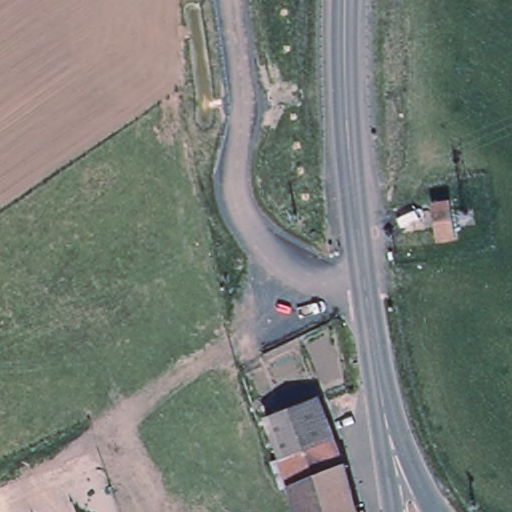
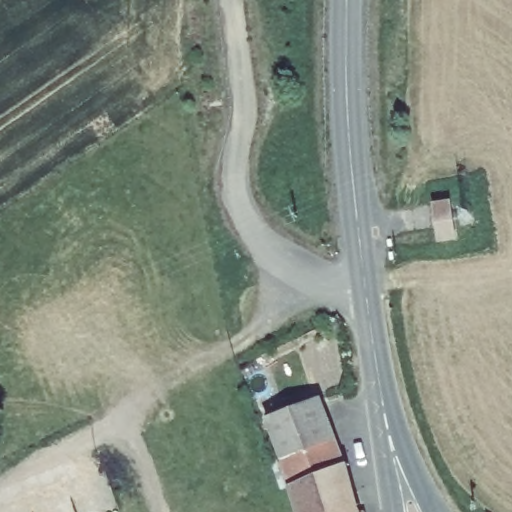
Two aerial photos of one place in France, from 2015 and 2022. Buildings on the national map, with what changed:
unchanged [(448,204),(453,237),(436,240),(431,206),(448,204)]
unchanged [(281,492),(274,466),(281,463),(269,422),(324,403),(345,471),(355,512),(297,512),(289,490),(281,492)]

